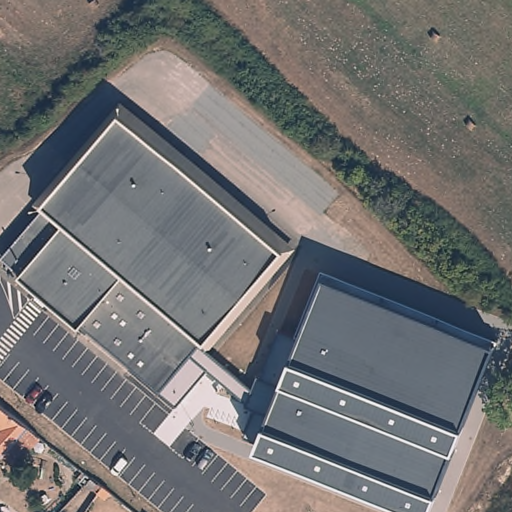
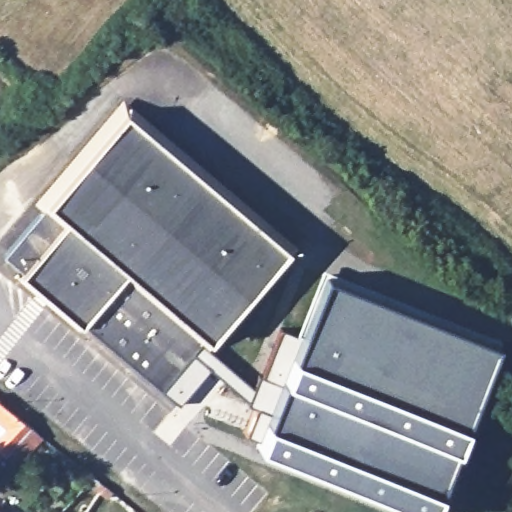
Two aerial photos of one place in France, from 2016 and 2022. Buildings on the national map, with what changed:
unchanged [(284,253),(114,110),(119,104),(287,249),(284,253)]
unchanged [(76,327),(72,331),(13,282),(17,277),(0,263),(0,257),(41,208),(36,203),(114,110),(284,253),(205,346),(199,341),(163,384),(155,393),(135,376),(76,327)]
unchanged [(424,512),(258,447),(245,435),(258,408),(248,405),(259,377),(263,377),(281,329),(296,334),(321,272),(329,278),(497,344),(429,512),(424,512)]
unchanged [(207,367),(179,401),(165,382),(190,352),(207,367)]
unchanged [(0,442),(6,436),(0,431),(0,411),(33,436),(29,439),(38,448),(17,470),(8,461),(0,453),(0,442)]
unchanged [(92,492),(96,486),(102,491),(111,497),(106,503),(98,497),(92,492)]

